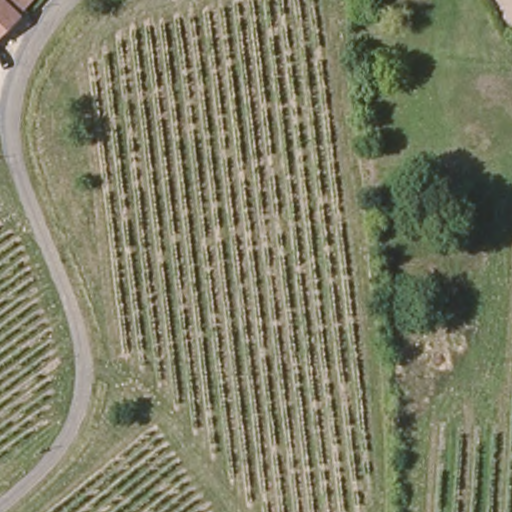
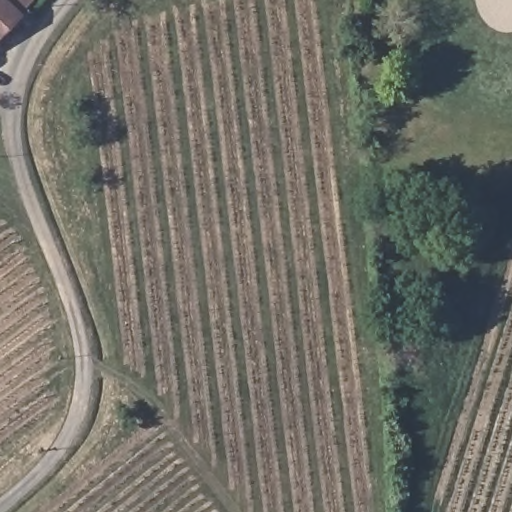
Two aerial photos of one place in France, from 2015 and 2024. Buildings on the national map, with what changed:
unchanged [(0,36),(0,0),(33,0),(0,36)]

